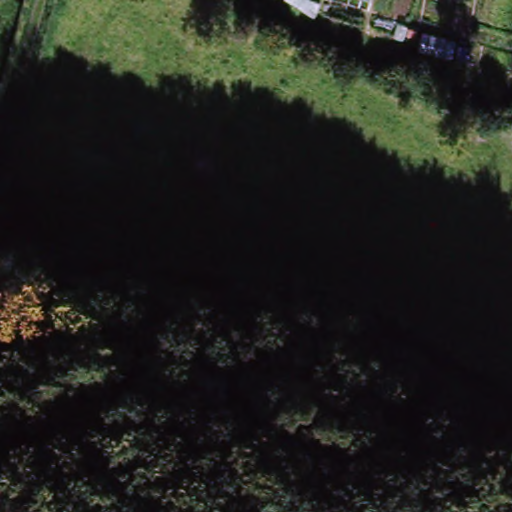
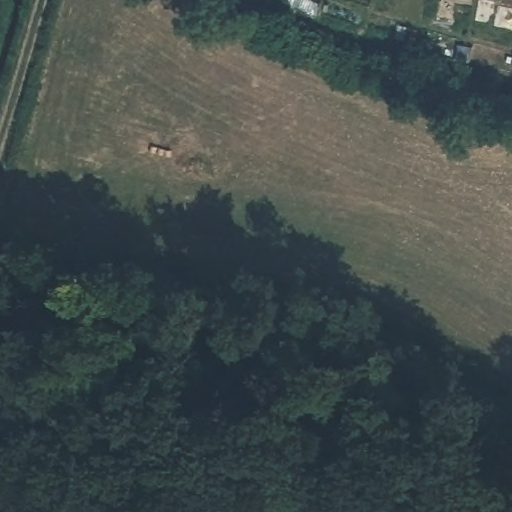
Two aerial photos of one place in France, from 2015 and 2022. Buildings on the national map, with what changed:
[]

